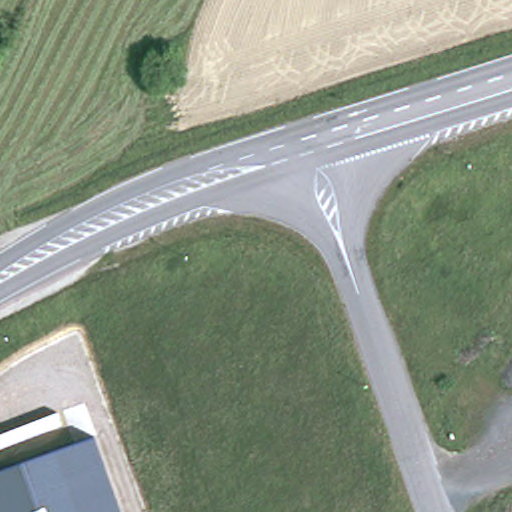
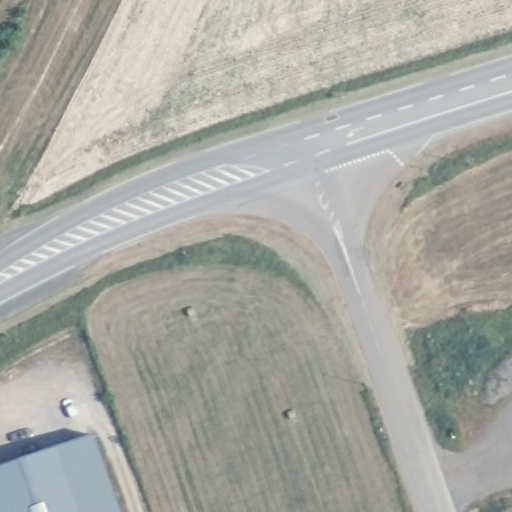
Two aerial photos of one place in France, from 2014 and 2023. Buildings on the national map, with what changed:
unchanged [(97,436),(124,512),(0,512),(0,470),(97,436)]

